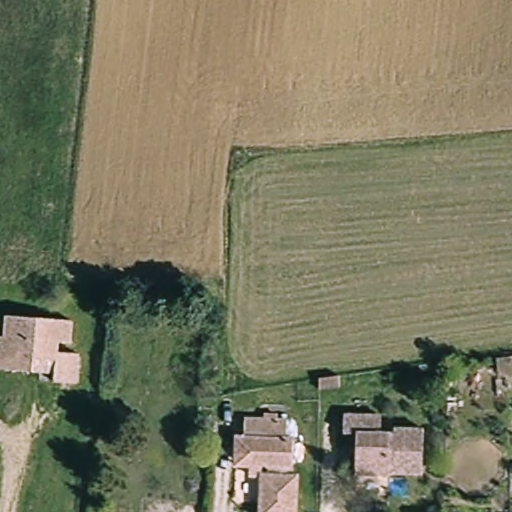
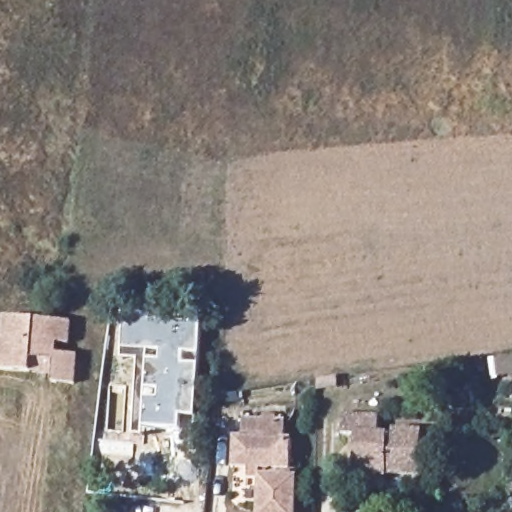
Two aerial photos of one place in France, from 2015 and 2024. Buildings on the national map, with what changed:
new [(198,417),(181,416),(180,430),(144,427),(143,435),(134,435),(138,361),(123,360),(124,311),(201,313),(198,417)]
unchanged [(0,370),(0,317),(61,320),(60,342),(49,342),(48,353),(70,353),(69,385),(42,383),(43,371),(22,371),(0,370)]
new [(496,360),(512,357),(512,377),(492,381),(489,359),(496,358),(496,360)]
unchanged [(394,436),(394,428),(418,428),(418,473),(386,473),(386,477),(353,477),(351,435),(339,435),(340,418),(376,418),(376,436),(394,436)]
unchanged [(285,442),(285,480),(291,480),(290,512),(255,512),(255,480),(265,479),(265,468),(231,470),(230,442),(240,441),(240,427),(279,426),(279,442),(285,442)]

